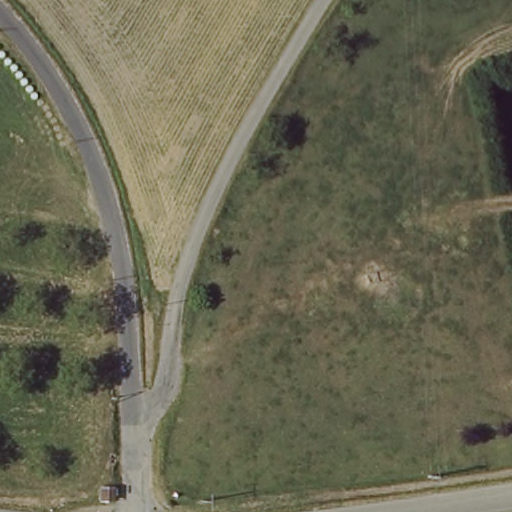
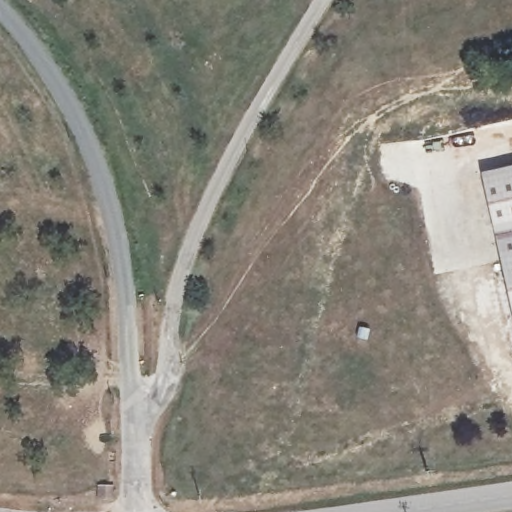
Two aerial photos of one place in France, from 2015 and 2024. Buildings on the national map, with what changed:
new [(482,176),(512,170),(512,309),(482,176)]
unchanged [(107,490),(106,501),(92,501),(93,489),(107,490)]

